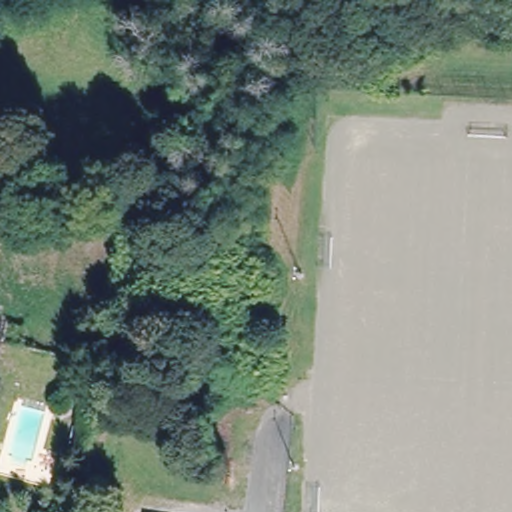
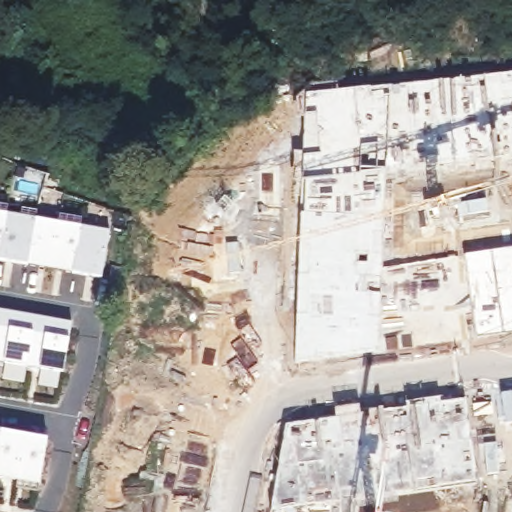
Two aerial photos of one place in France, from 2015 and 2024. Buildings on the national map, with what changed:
new [(477,339),(379,351),(294,365),(304,95),(512,73),(512,156),(385,169),(381,265),(512,248),(512,334),(477,339)]
new [(100,280),(0,262),(0,215),(108,235),(100,280)]
new [(61,375),(0,364),(0,313),(70,325),(61,375)]
new [(512,392),(512,421),(504,422),(499,393),(512,392)]
new [(285,426),(334,420),(334,411),(360,407),(360,414),(406,408),(404,404),(440,399),(441,405),(466,400),(479,485),(359,501),(357,512),(271,512),(285,426)]
new [(15,483),(0,480),(0,433),(45,441),(38,487),(36,494),(14,490),(15,483)]

